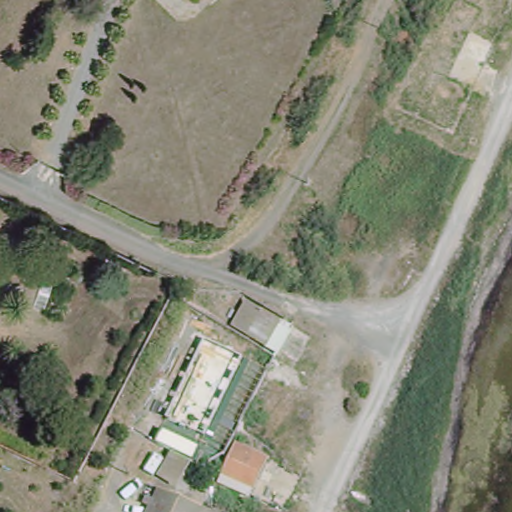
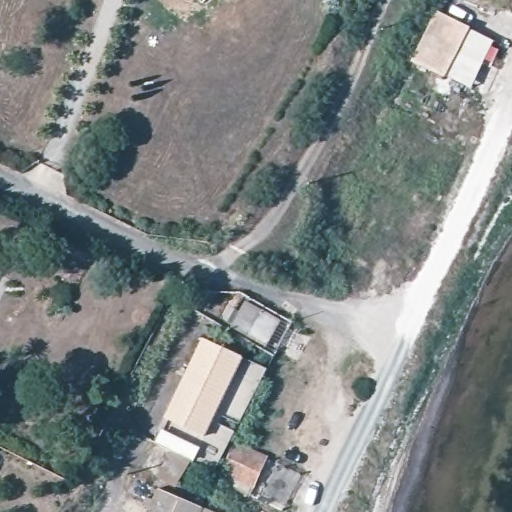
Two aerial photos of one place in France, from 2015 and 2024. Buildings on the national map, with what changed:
new [(471,27),(446,77),(410,59),(437,10),(471,27)]
unchanged [(248,296),(281,314),(266,340),(233,322),(248,296)]
demolished [(196,395),(173,377),(205,317),(226,333),(196,395)]
new [(243,358),(205,438),(165,418),(203,338),(243,358)]
unchanged [(267,447),(254,480),(221,463),(234,431),(267,447)]
unchanged [(183,484),(159,474),(168,446),(192,458),(183,484)]
unchanged [(208,512),(145,512),(156,488),(208,512)]

